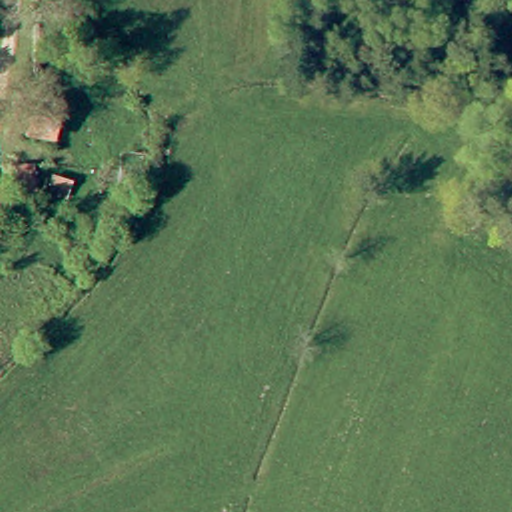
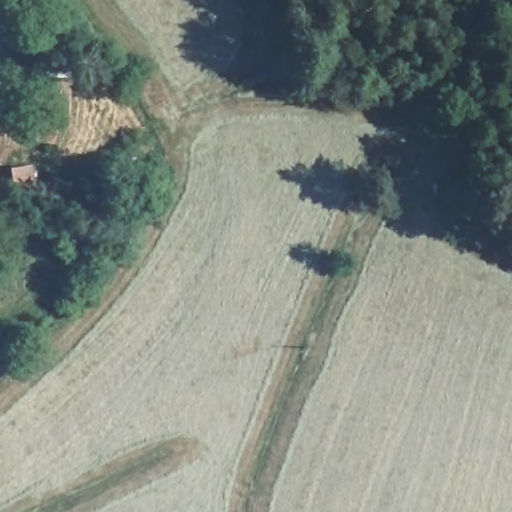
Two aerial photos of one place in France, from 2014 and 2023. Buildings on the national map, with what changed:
unchanged [(43,199),(10,204),(5,171),(39,171),(43,199)]

